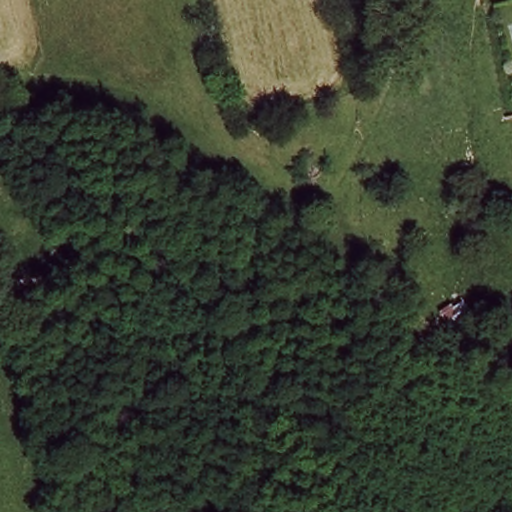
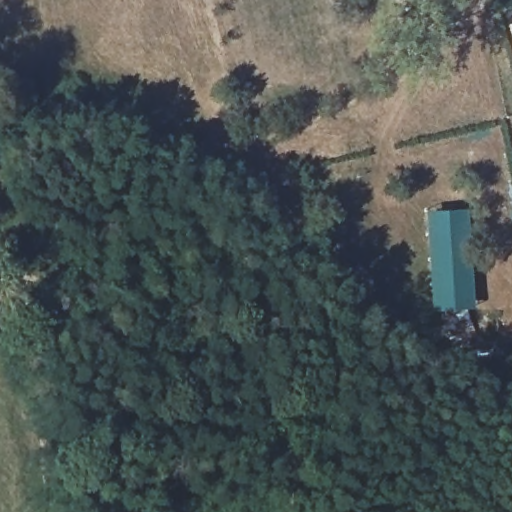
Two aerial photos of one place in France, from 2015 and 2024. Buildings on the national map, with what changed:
new [(466,207),(472,307),(431,310),(427,278),(425,209),(466,207)]

